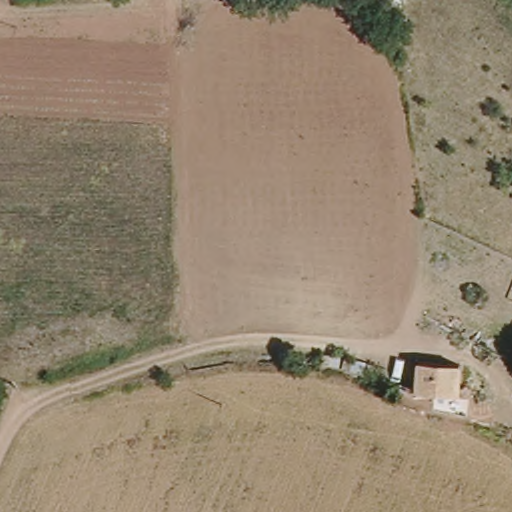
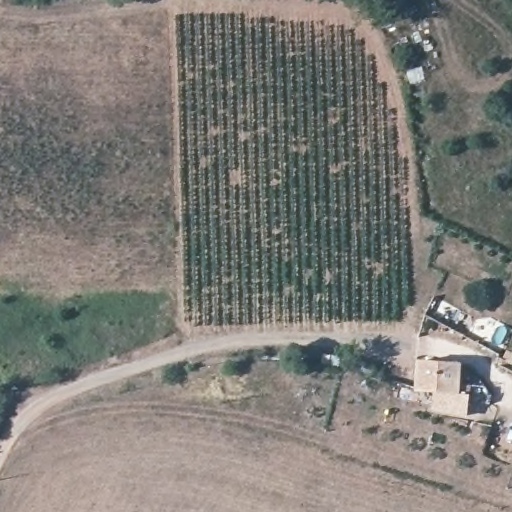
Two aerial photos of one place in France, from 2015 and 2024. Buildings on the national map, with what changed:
unchanged [(460,365),(458,396),(416,392),(417,363),(460,365)]

